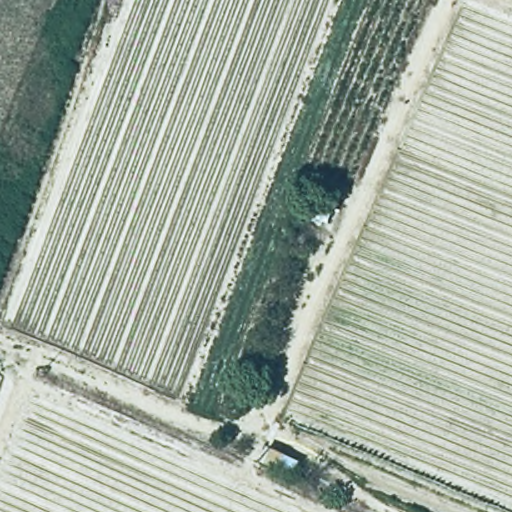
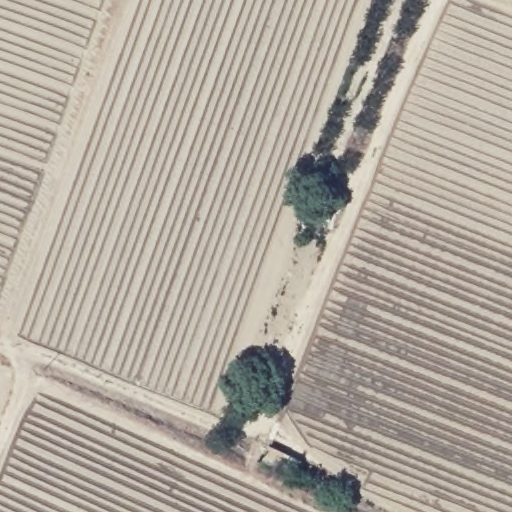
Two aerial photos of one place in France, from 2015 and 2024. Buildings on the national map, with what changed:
unchanged [(284,453),(277,467),(261,460),(267,446),(284,453)]

